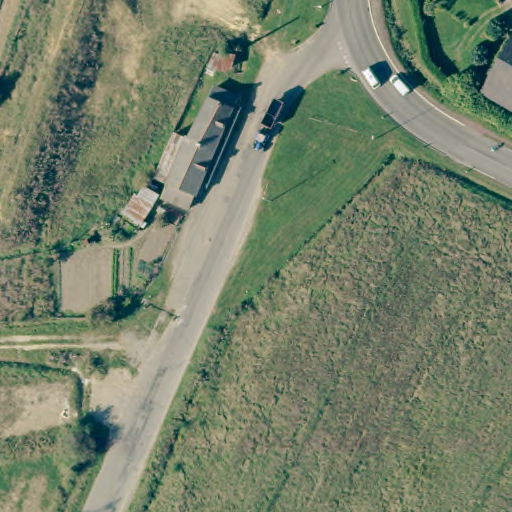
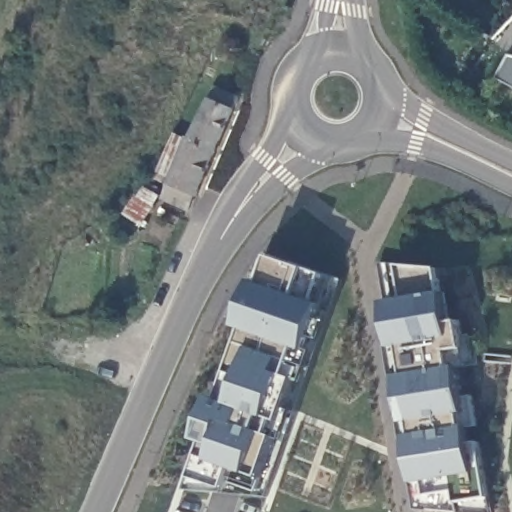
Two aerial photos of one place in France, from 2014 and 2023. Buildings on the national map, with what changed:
new [(512,86),(498,79),(510,56),(512,56),(512,86)]
unchanged [(155,173),(174,136),(188,142),(211,86),(223,91),(235,96),(196,193),(194,192),(189,207),(176,202),(164,197),(170,182),(153,175),(155,173)]
new [(313,301),(326,306),(310,352),(298,347),(289,374),(299,379),(284,422),(273,419),(267,417),(262,430),(269,433),(279,437),(265,476),(254,472),(253,475),(233,467),(228,487),(226,491),(192,490),(196,476),(208,444),(200,440),(217,397),(223,399),(248,331),(240,328),(256,281),(263,282),(273,255),(308,268),(325,274),(313,301)]
new [(426,482),(416,485),(407,436),(414,433),(413,422),(406,424),(400,377),(406,375),(401,348),(394,350),(386,303),(405,299),(400,266),(442,268),(446,294),(451,324),(461,321),(465,347),(454,350),(471,444),(479,442),(488,498),(456,502),(453,491),(428,494),(426,482)]

